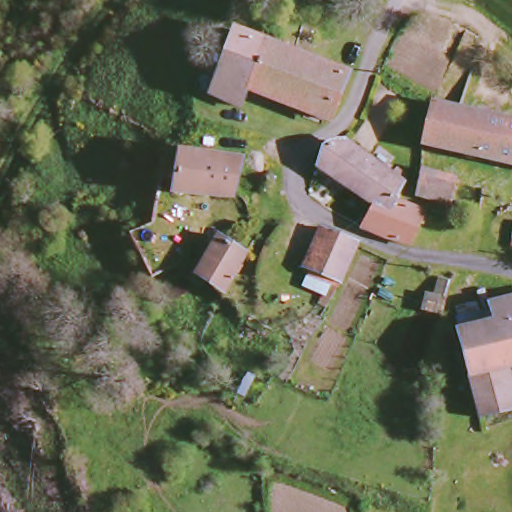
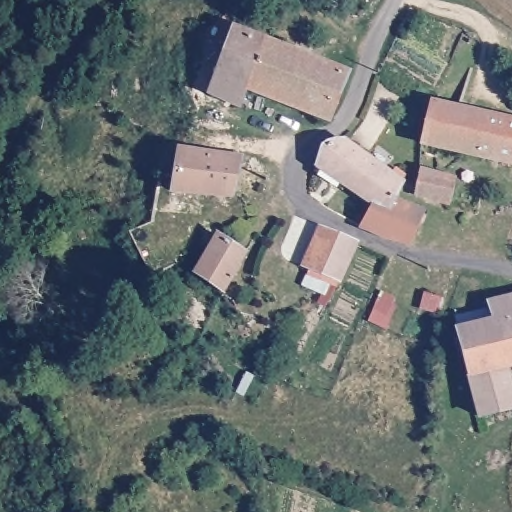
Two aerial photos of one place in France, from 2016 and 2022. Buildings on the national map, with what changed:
unchanged [(250,90),(242,108),(208,95),(233,31),(269,49),(250,90)]
unchanged [(282,102),(250,90),(269,49),(298,63),(282,102)]
unchanged [(340,81),(323,118),(282,102),(298,63),(340,81)]
unchanged [(421,147),(423,110),(512,125),(512,162),(421,147)]
unchanged [(392,215),(366,201),(313,171),(330,139),(357,153),(405,180),(401,190),(396,205),(392,215)]
unchanged [(240,162),(237,202),(182,194),(177,193),(182,151),(240,162)]
unchanged [(412,193),(420,168),(458,180),(450,205),(412,193)]
unchanged [(357,225),(366,201),(392,215),(396,205),(417,214),(408,242),(357,225)]
unchanged [(216,234),(250,255),(227,295),(195,272),(216,234)]
unchanged [(348,277),(307,268),(310,252),(315,234),(356,245),(348,277)]
unchanged [(438,288),(438,303),(424,302),(423,288),(438,288)]
unchanged [(490,332),(487,318),(483,305),(512,297),(512,326),(490,332)]
unchanged [(477,421),(455,345),(454,343),(450,328),(487,318),(490,332),(512,326),(512,374),(506,375),(510,390),(512,390),(512,411),(477,421)]

